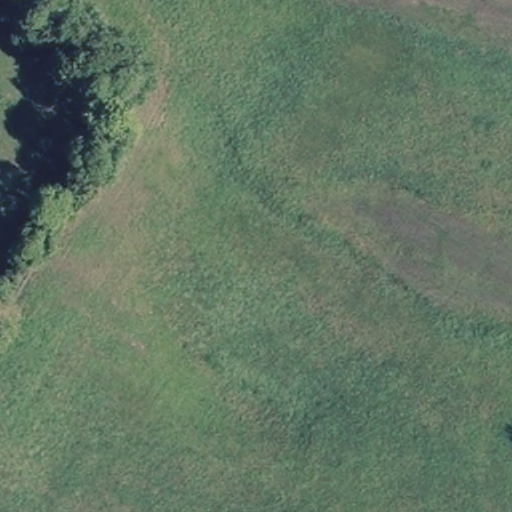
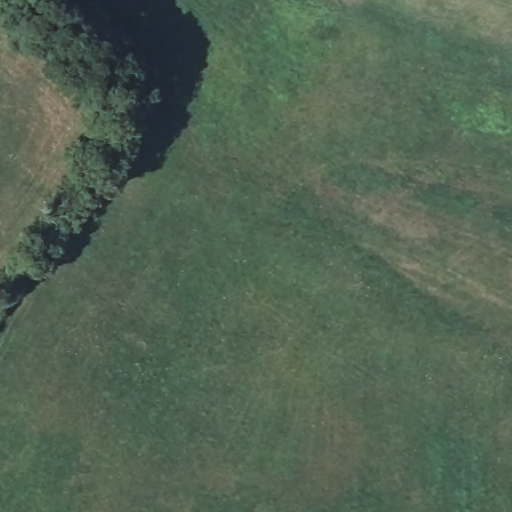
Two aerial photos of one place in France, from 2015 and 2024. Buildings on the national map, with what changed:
[]

